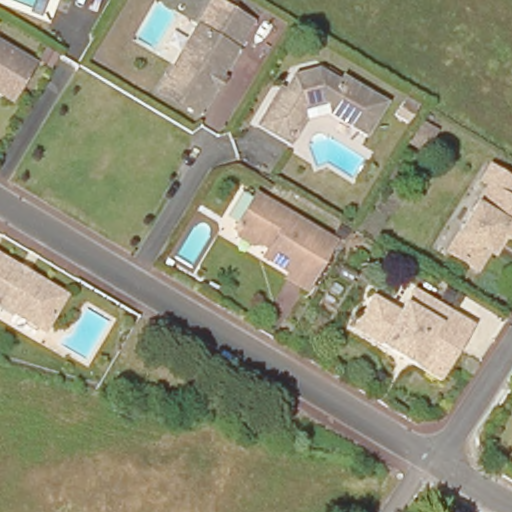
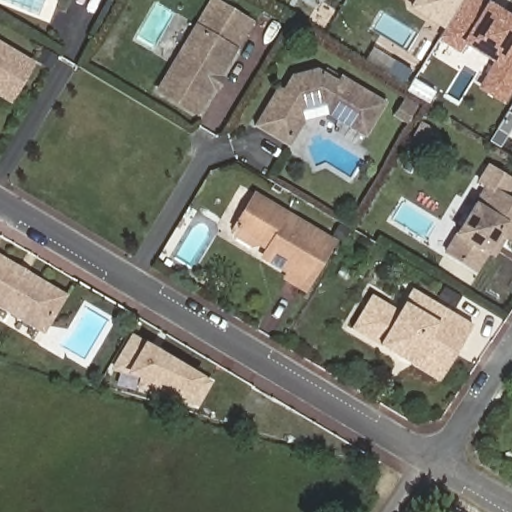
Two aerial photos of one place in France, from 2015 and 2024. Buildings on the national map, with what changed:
new [(512,87),(502,103),(478,88),(493,65),(466,48),(461,56),(435,40),(442,28),(408,7),(412,0),(478,0),(512,19),(512,87)]
unchanged [(219,93),(214,90),(201,114),(162,92),(198,29),(212,2),(222,8),(251,25),(220,80),(224,82),(219,93)]
unchanged [(37,64),(16,100),(0,90),(0,41),(37,64)]
unchanged [(282,144),(252,126),(267,99),(275,86),(280,88),(287,75),(312,69),(333,82),(337,75),(382,103),(361,138),(327,116),(325,106),(319,103),(302,105),(298,112),(302,123),(296,135),(288,148),(282,144)]
new [(406,97),(418,105),(411,117),(407,124),(393,116),(398,109),(406,97)]
new [(421,121),(438,131),(425,154),(408,144),(421,121)]
unchanged [(468,266),(439,248),(479,182),(472,178),(482,161),(507,177),(499,192),(512,200),(512,238),(510,242),(498,234),(489,249),(482,244),(468,266)]
unchanged [(246,240),(230,231),(229,221),(247,189),(326,236),(300,282),(282,271),(284,266),(259,251),(264,243),(254,236),(246,240)]
unchanged [(36,326),(0,305),(0,258),(12,265),(21,271),(56,292),(36,326)]
unchanged [(346,328),(350,321),(366,294),(393,311),(399,301),(407,288),(436,306),(467,325),(433,381),(407,365),(395,357),(371,344),(346,328)]
new [(137,390),(137,377),(113,367),(129,334),(217,379),(199,409),(137,390)]

